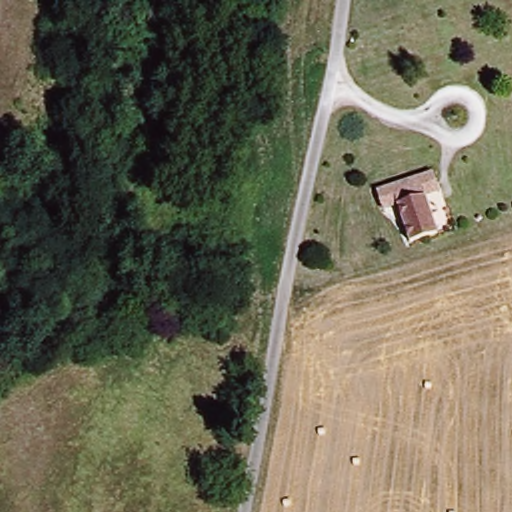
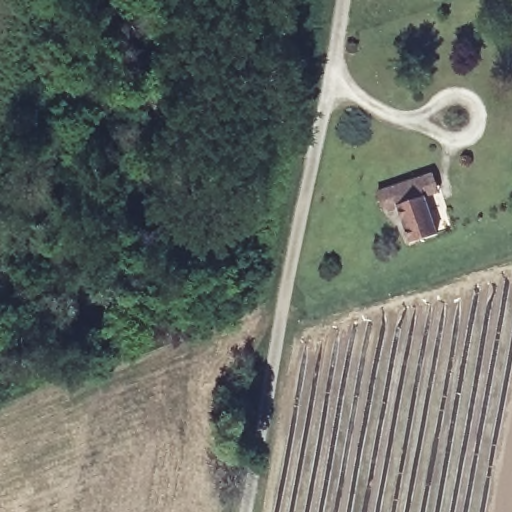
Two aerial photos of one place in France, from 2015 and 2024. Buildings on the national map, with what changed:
unchanged [(415,242),(401,202),(387,206),(382,189),(422,175),(437,171),(442,189),(428,194),(442,233),(415,242)]

